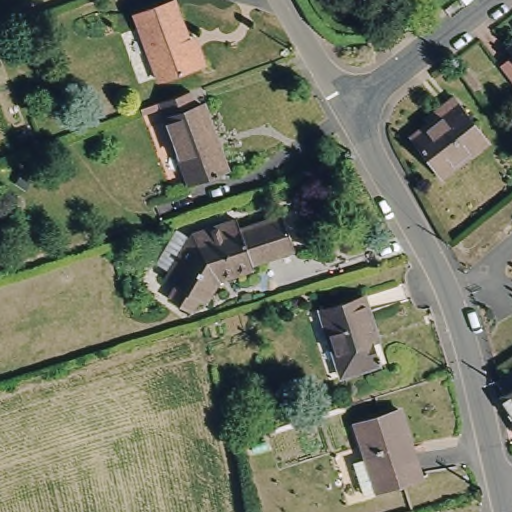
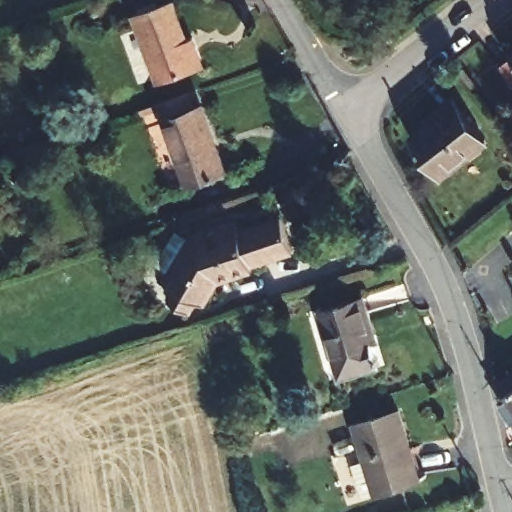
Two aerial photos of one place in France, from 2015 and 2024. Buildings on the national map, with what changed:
unchanged [(173,1),(198,67),(160,81),(135,15),(173,1)]
unchanged [(512,56),(507,50),(512,46),(512,82),(500,66),(512,56)]
unchanged [(487,141),(441,176),(412,138),(444,114),(440,110),(454,99),(487,141)]
unchanged [(211,113),(227,156),(229,155),(237,178),(200,192),(172,119),(153,126),(150,119),(170,111),(200,100),(205,115),(211,113)]
unchanged [(163,256),(178,230),(191,238),(192,235),(237,220),(241,230),(283,215),(295,249),(252,264),(254,268),(219,280),(205,303),(198,299),(191,311),(170,300),(177,286),(166,280),(171,272),(158,265),(163,256)]
unchanged [(364,296),(375,334),(372,335),(380,363),(341,375),(320,310),(364,296)]
unchanged [(498,403),(503,400),(494,388),(512,376),(512,423),(498,403)]
unchanged [(417,443),(411,445),(420,474),(369,490),(358,457),(371,453),(360,420),(404,405),(417,443)]

